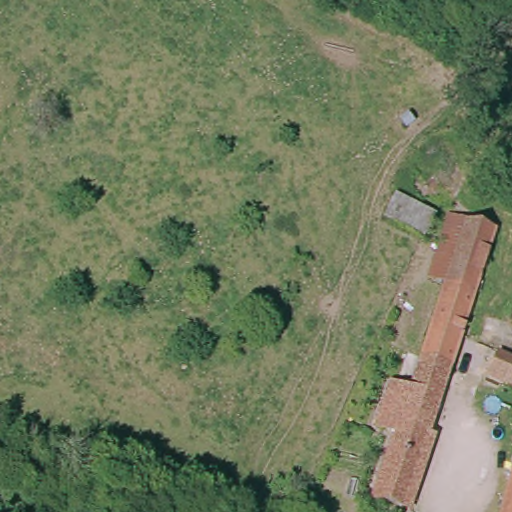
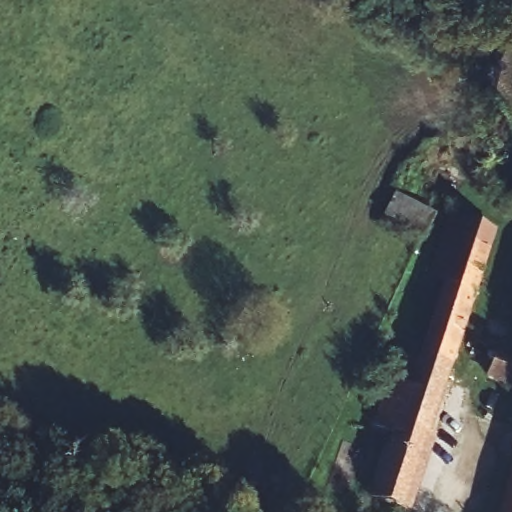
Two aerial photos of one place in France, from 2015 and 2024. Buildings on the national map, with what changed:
unchanged [(424,239),(380,219),(394,192),(436,214),(424,239)]
unchanged [(351,494),(370,448),(380,452),(455,278),(439,270),(465,210),(512,233),(392,503),(390,512),(374,512),(376,502),(351,494)]
unchanged [(502,357),(512,363),(512,387),(492,376),(502,357)]
unchanged [(504,512),(512,490),(512,512),(504,512)]

